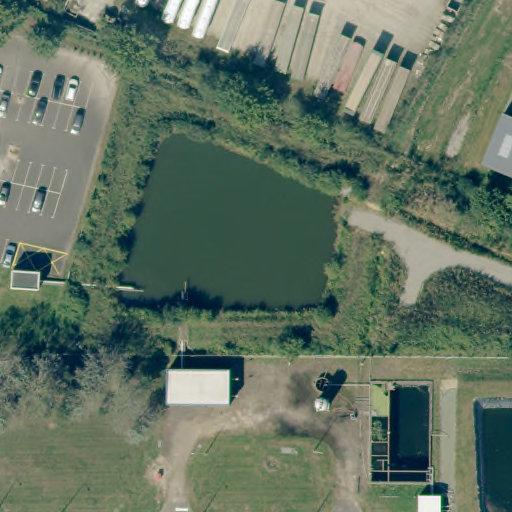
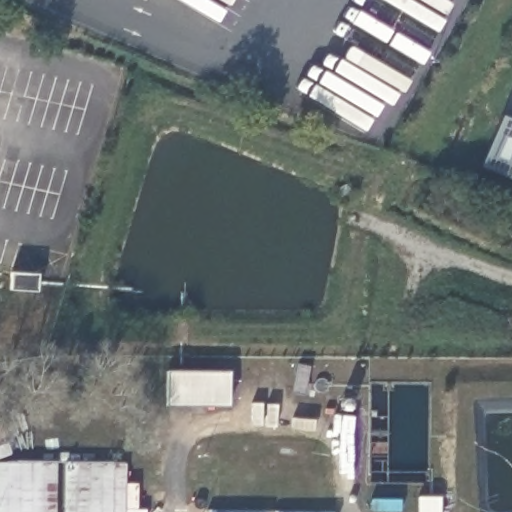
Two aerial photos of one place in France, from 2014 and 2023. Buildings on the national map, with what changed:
unchanged [(500,119),(512,123),(512,182),(480,170),(500,119)]
unchanged [(225,407),(162,407),(162,370),(226,371),(225,407)]
new [(146,509),(146,512),(0,512),(0,462),(126,462),(125,508),(146,509)]

